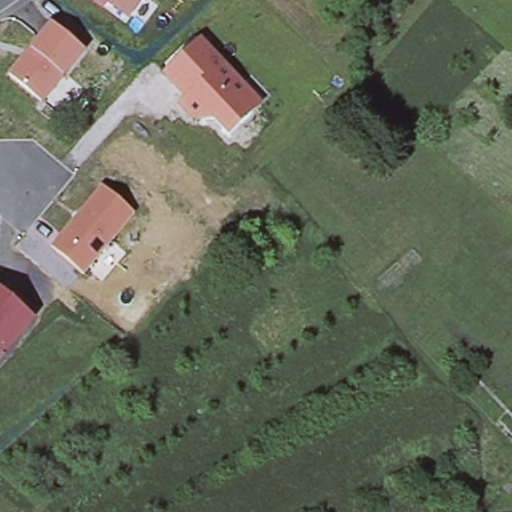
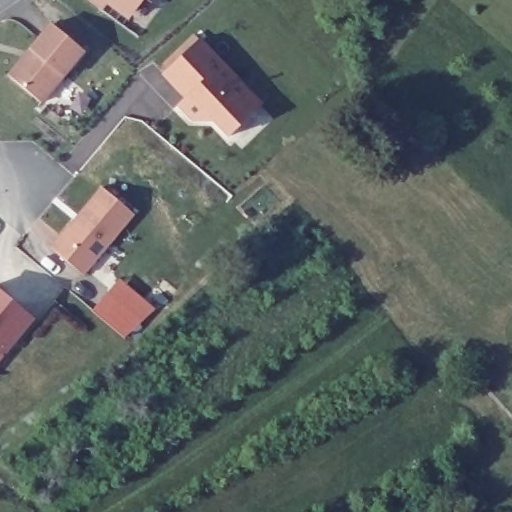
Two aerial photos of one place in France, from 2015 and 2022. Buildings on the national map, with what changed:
unchanged [(110,4),(104,11),(91,0),(148,0),(132,20),(110,4)]
unchanged [(86,55),(45,105),(9,74),(50,24),(86,55)]
unchanged [(260,109),(229,137),(211,119),(190,121),(177,105),(184,97),(163,73),(199,40),(260,109)]
unchanged [(135,216),(82,277),(50,251),(101,187),(135,216)]
new [(155,312),(126,339),(94,312),(119,281),(155,312)]
unchanged [(0,359),(0,291),(32,321),(0,359)]

